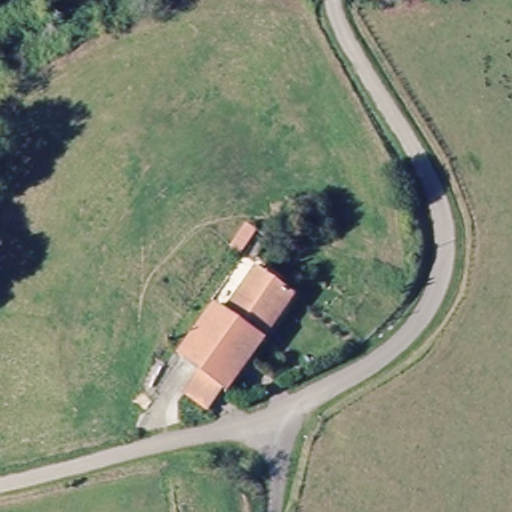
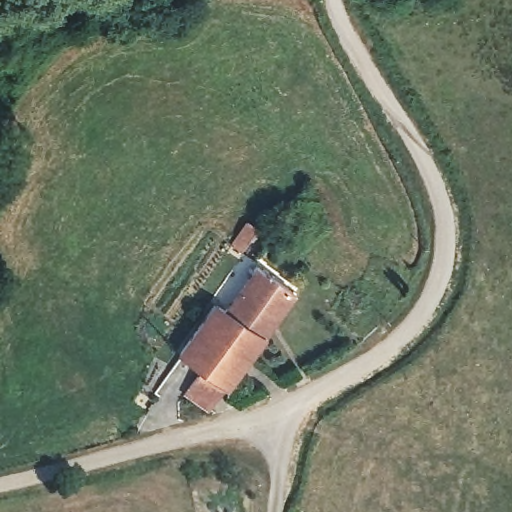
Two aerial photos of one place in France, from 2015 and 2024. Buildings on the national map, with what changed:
unchanged [(205,405),(180,386),(195,368),(178,354),(215,305),(216,306),(219,305),(221,304),(222,301),(227,302),(254,267),(274,283),(283,271),(303,286),(227,390),(225,388),(213,404),(205,405)]

